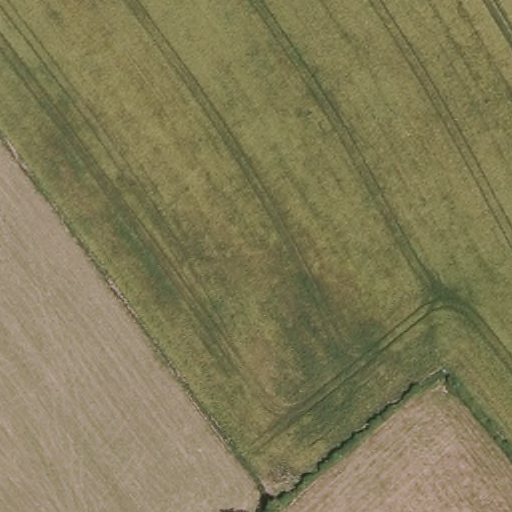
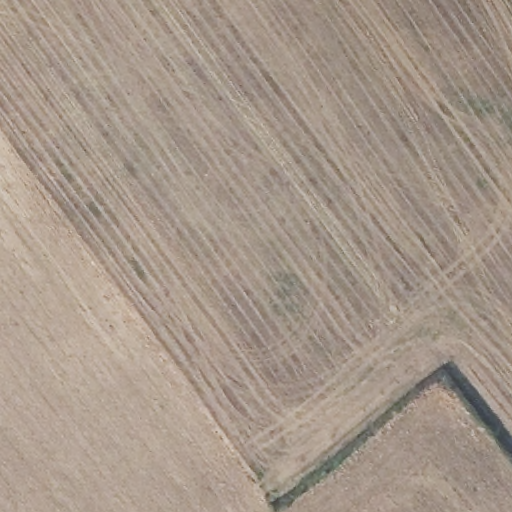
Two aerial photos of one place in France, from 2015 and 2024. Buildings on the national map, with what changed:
[]

